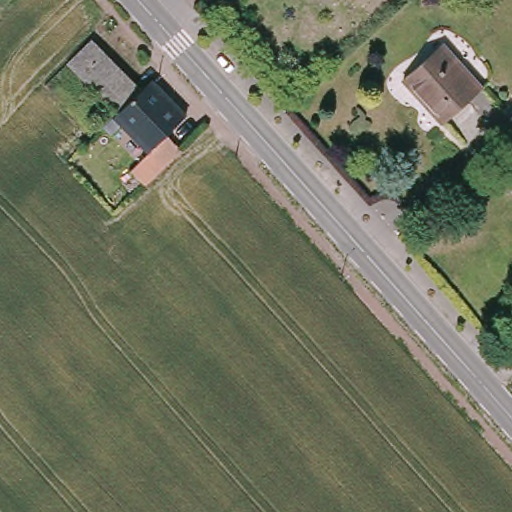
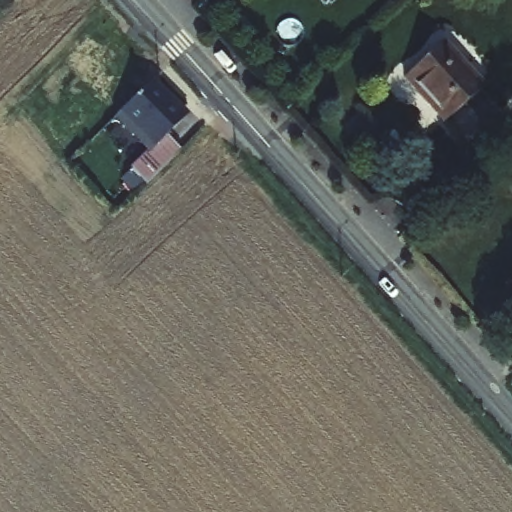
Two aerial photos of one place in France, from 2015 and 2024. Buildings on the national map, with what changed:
unchanged [(86,39),(90,35),(102,49),(140,86),(116,109),(67,57),(86,39)]
unchanged [(443,124),(402,79),(441,45),(482,90),(443,124)]
unchanged [(129,166),(148,146),(115,111),(116,109),(140,86),(150,77),(183,112),(164,131),(174,141),(180,148),(145,182),(138,176),(129,166)]
unchanged [(96,120),(91,125),(87,120),(91,115),(96,120)]

